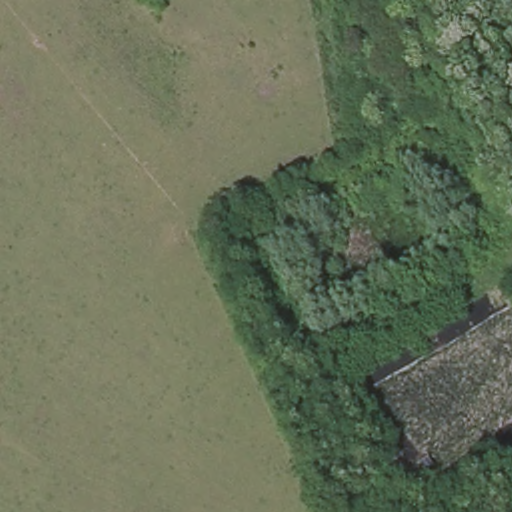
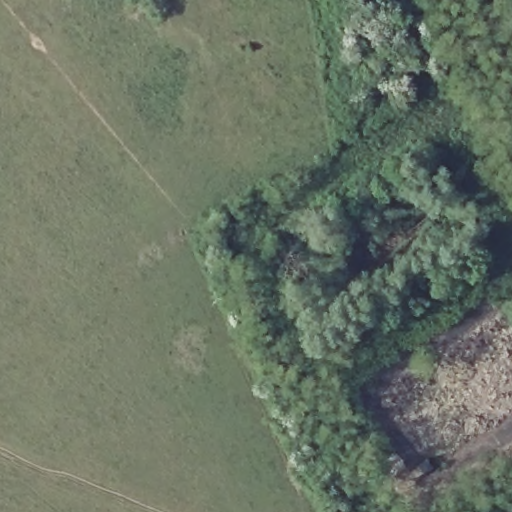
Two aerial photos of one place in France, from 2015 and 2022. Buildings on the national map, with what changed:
unchanged [(432,475),(406,490),(386,459),(397,451),(411,470),(424,461),(432,475)]

